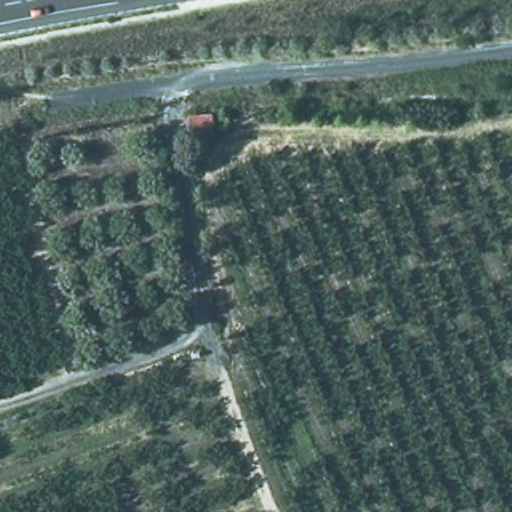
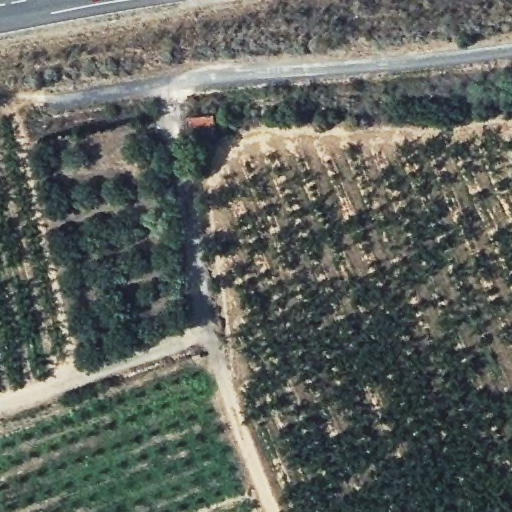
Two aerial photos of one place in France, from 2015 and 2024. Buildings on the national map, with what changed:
unchanged [(216,136),(189,140),(185,118),(207,117),(216,136)]

